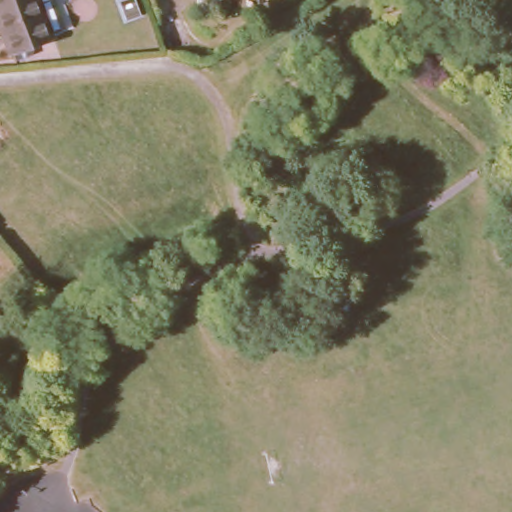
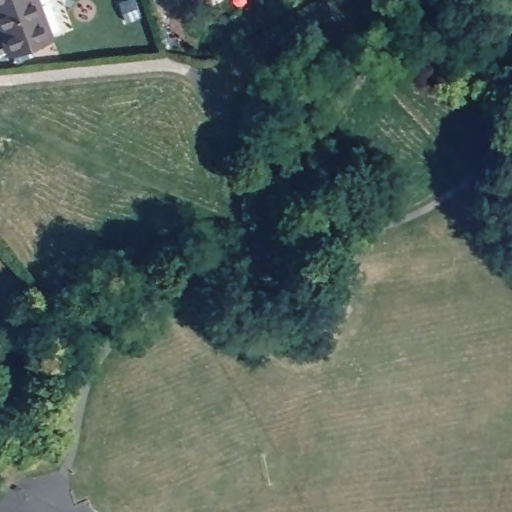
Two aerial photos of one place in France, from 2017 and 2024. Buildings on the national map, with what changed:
unchanged [(11,58),(0,29),(0,0),(38,0),(54,42),(11,58)]

